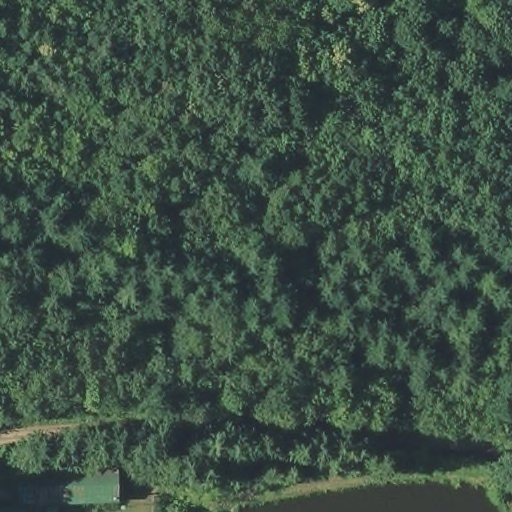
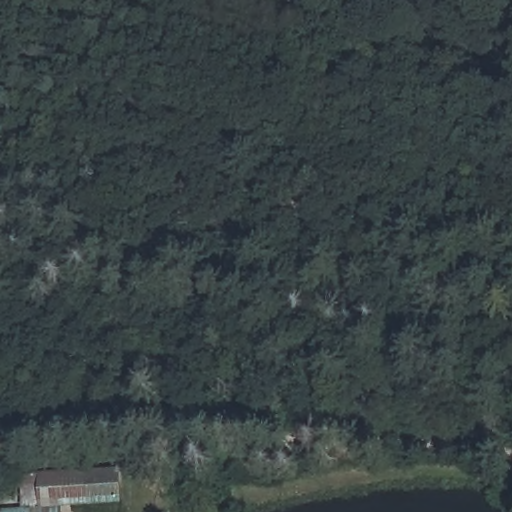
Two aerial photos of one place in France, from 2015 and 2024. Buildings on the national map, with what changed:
unchanged [(64,512),(1,512),(0,508),(21,507),(22,477),(119,470),(122,503),(64,507),(64,512)]

